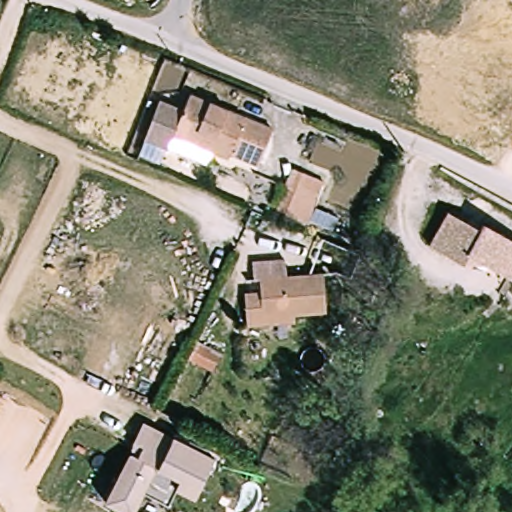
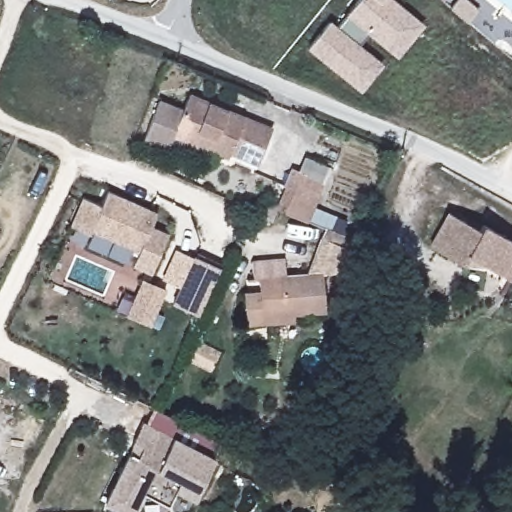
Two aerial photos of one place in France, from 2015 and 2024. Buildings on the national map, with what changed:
new [(383,64),(361,92),(307,48),(329,20),(337,27),(346,16),(359,0),(395,0),(424,24),(397,57),(368,34),(360,44),(383,64)]
demolished [(86,33),(119,48),(107,70),(75,57),(86,33)]
unchanged [(147,123),(160,95),(175,102),(182,86),(271,127),(255,162),(228,149),(226,154),(172,129),(167,142),(143,131),(147,123)]
unchanged [(290,182),(297,185),(303,168),(311,172),(328,180),(312,218),(285,207),(280,205),(290,182)]
new [(138,252),(91,231),(90,235),(70,225),(82,197),(102,205),(108,191),(158,213),(152,226),(169,233),(152,273),(133,264),(138,252)]
new [(322,237),(327,226),(312,218),(317,207),(347,219),(341,233),(358,240),(355,251),(345,273),(323,274),(307,275),(322,237)]
unchanged [(450,210),(480,229),(484,224),(512,242),(512,267),(505,277),(467,253),(462,262),(430,242),(450,210)]
new [(221,268),(198,315),(172,303),(193,257),(221,268)]
unchanged [(264,323),(249,324),(247,293),(260,292),(260,278),(255,279),(253,260),(287,258),(288,277),(323,274),(325,309),(295,311),(296,321),(264,323)]
new [(167,289),(150,326),(125,315),(142,278),(167,289)]
unchanged [(223,351),(211,369),(190,357),(198,340),(223,351)]
unchanged [(196,495),(177,486),(170,503),(145,490),(134,512),(130,512),(107,501),(132,451),(139,455),(144,445),(135,440),(144,420),(215,456),(196,495)]

